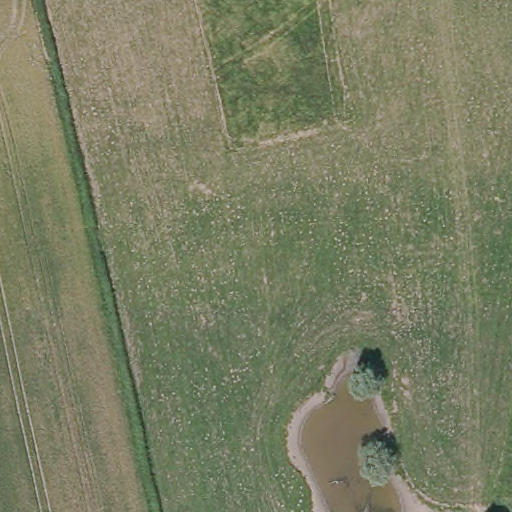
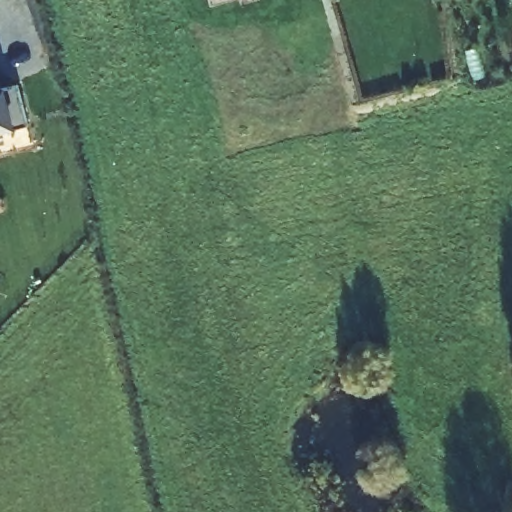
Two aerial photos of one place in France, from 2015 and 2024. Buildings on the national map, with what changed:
new [(3,85),(4,88),(18,84),(29,123),(0,131),(0,86),(3,85)]

